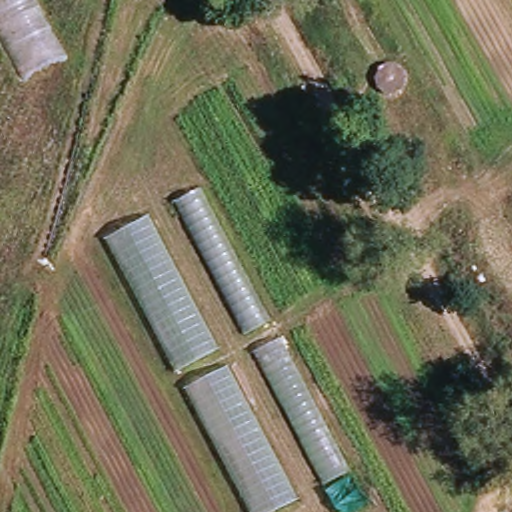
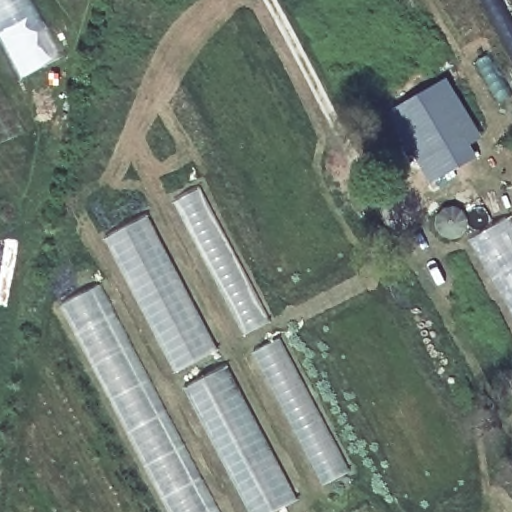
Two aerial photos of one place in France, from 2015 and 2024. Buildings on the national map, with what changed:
unchanged [(22,76),(0,35),(0,0),(37,0),(65,51),(22,76)]
new [(0,82),(26,133),(0,144),(0,82)]
new [(449,147),(460,166),(434,181),(424,166),(393,113),(446,83),(475,131),(449,147)]
unchanged [(269,323),(243,336),(173,202),(200,187),(269,323)]
new [(437,213),(443,207),(452,204),(461,207),(467,213),(470,222),(467,231),(461,237),(452,239),(443,237),(437,231),(435,222),(437,213)]
unchanged [(148,216),(218,351),(176,374),(106,240),(148,216)]
unchanged [(512,219),(512,311),(472,242),(511,218),(512,219)]
new [(60,306),(100,286),(220,512),(169,512),(60,306)]
unchanged [(349,474),(324,488),(254,351),(278,338),(349,474)]
unchanged [(226,366),(298,500),(274,512),(251,512),(185,388),(226,366)]
new [(367,504),(371,512),(353,512),(367,504)]

